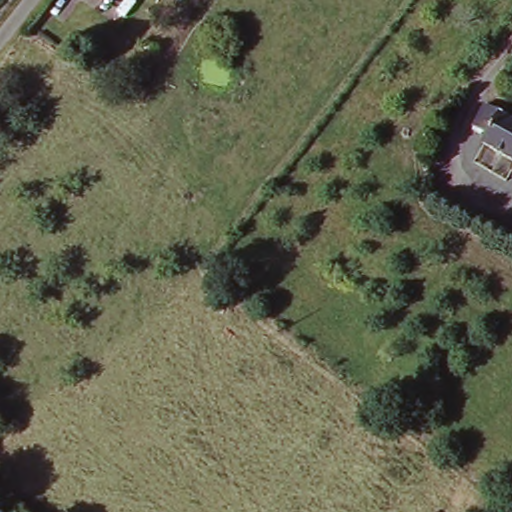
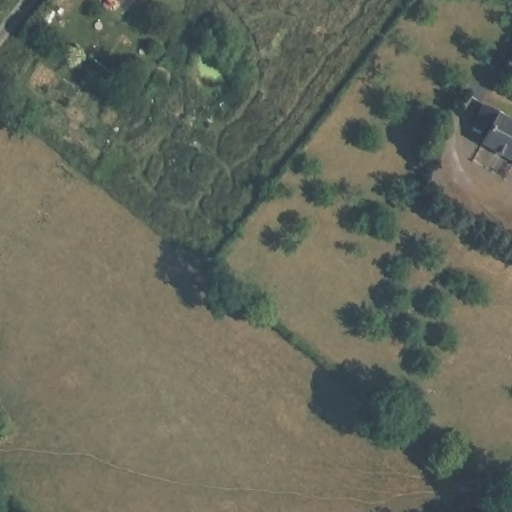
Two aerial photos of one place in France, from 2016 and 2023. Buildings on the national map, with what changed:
unchanged [(487,155),(490,150),(473,138),(490,115),(512,126),(512,167),(487,155)]

